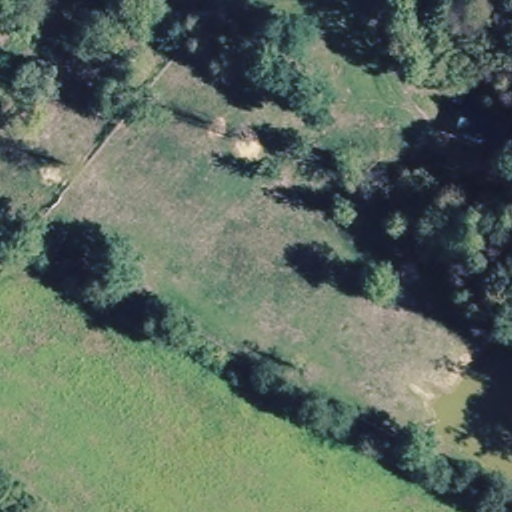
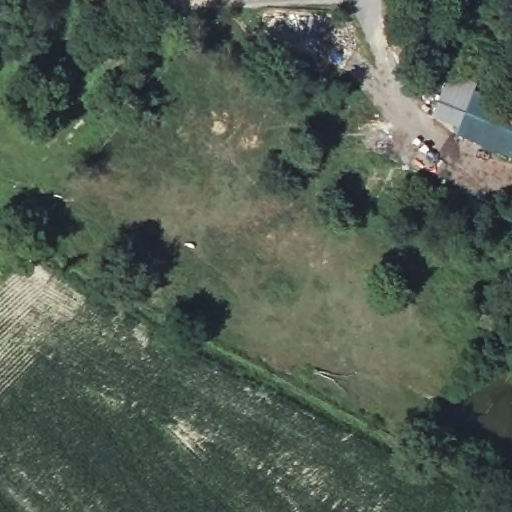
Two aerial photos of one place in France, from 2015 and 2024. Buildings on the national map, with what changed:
new [(430,116),(448,71),(477,82),(473,95),(460,128),(430,116)]
new [(473,95),(512,111),(512,161),(456,138),(473,95)]

